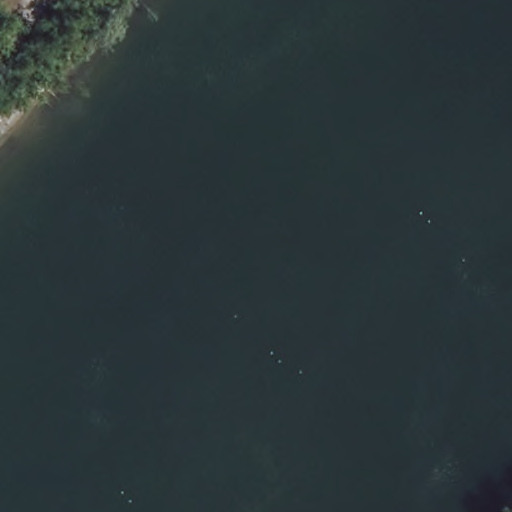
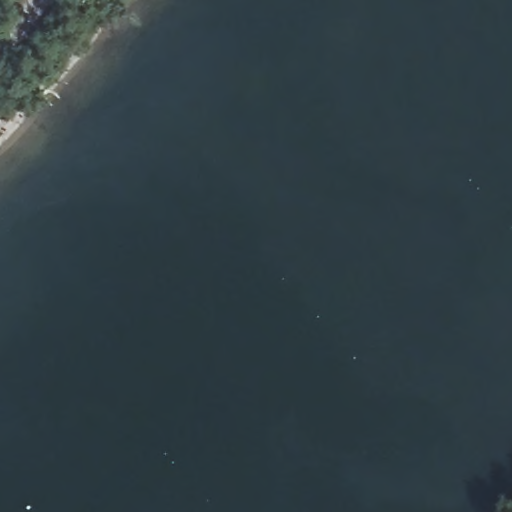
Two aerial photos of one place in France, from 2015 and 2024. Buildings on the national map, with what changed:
[]

